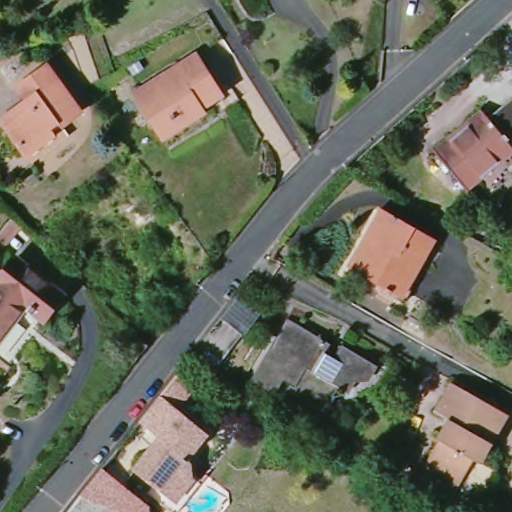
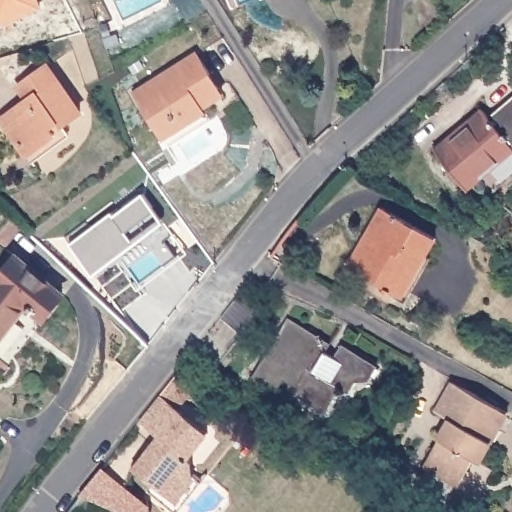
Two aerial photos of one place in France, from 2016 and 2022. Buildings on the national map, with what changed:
new [(42,9),(0,28),(0,0),(39,0),(42,9)]
unchanged [(137,100),(198,62),(220,95),(159,133),(137,100)]
unchanged [(5,121),(30,102),(21,88),(50,66),(82,113),(64,127),(61,123),(52,128),(57,135),(30,156),(5,121)]
unchanged [(437,153),(467,128),(465,126),(483,112),(490,119),(512,100),(512,153),(468,191),(437,153)]
new [(110,214),(114,218),(141,194),(184,251),(141,288),(114,260),(92,277),(70,244),(110,214)]
unchanged [(348,272),(355,260),(350,257),(382,199),(435,229),(425,248),(428,250),(401,301),(348,272)]
unchanged [(58,296),(40,319),(23,306),(0,335),(0,276),(13,259),(58,296)]
unchanged [(242,293),(263,309),(244,335),(222,318),(242,293)]
unchanged [(292,390),(295,384),(283,379),(275,393),(255,382),(288,324),(330,347),(326,353),(335,358),(341,348),(375,368),(370,378),(356,379),(348,393),(340,388),(327,409),(292,390)]
unchanged [(157,485),(147,478),(150,474),(140,465),(145,459),(155,446),(157,447),(163,439),(143,422),(165,396),(181,376),(200,386),(181,409),(211,434),(192,459),(195,463),(196,477),(203,483),(205,485),(183,512),(173,512),(150,494),(157,485)]
unchanged [(421,467),(446,422),(432,414),(450,383),(503,414),(476,462),(470,459),(455,486),(421,467)]
unchanged [(153,504),(154,512),(130,512),(87,494),(107,468),(153,504)]
unchanged [(510,512),(512,509),(512,512),(510,512)]

